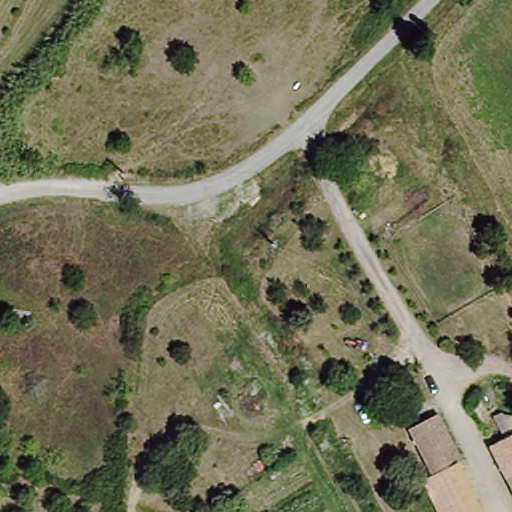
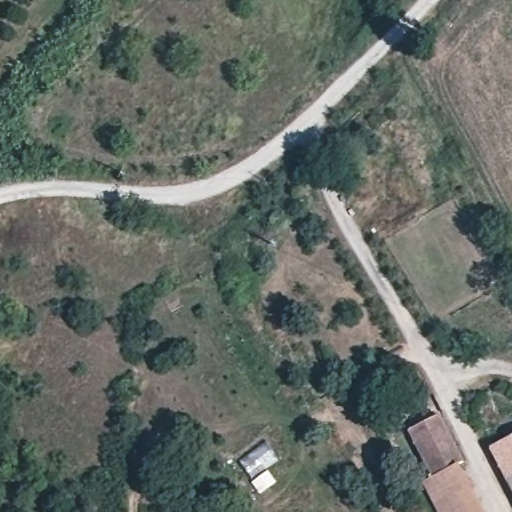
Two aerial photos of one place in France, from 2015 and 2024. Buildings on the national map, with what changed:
unchanged [(436,512),(422,485),(432,478),(408,434),(441,416),(486,512),(436,512)]
unchanged [(512,437),(512,496),(487,449),(512,437)]

